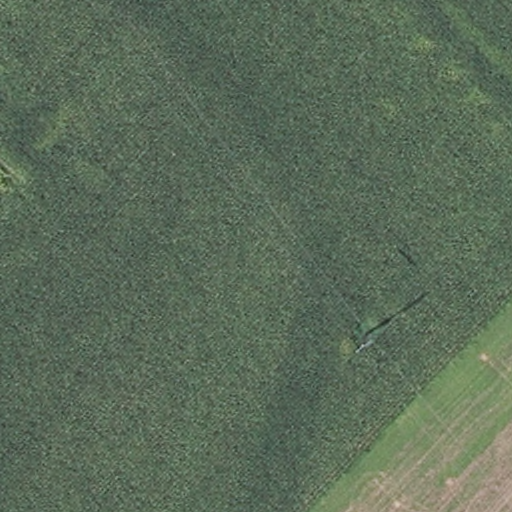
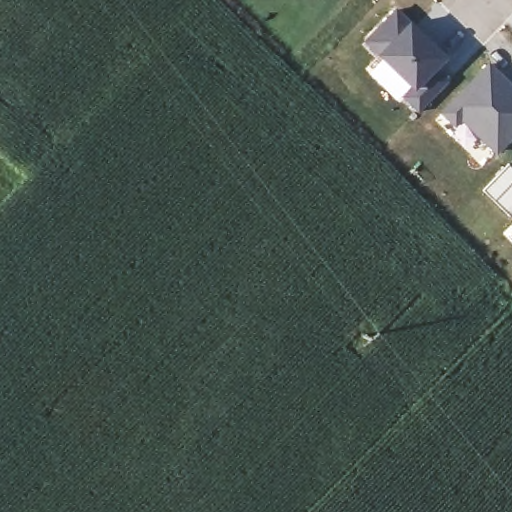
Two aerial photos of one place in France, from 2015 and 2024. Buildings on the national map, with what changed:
new [(397,7),(448,58),(420,86),(424,90),(440,78),(446,84),(419,112),(403,97),(413,88),(362,42),(397,7)]
new [(490,62),(512,83),(512,139),(497,155),(462,120),(454,127),(441,112),(490,62)]
new [(509,167),(512,170),(512,214),(486,190),(509,167)]

